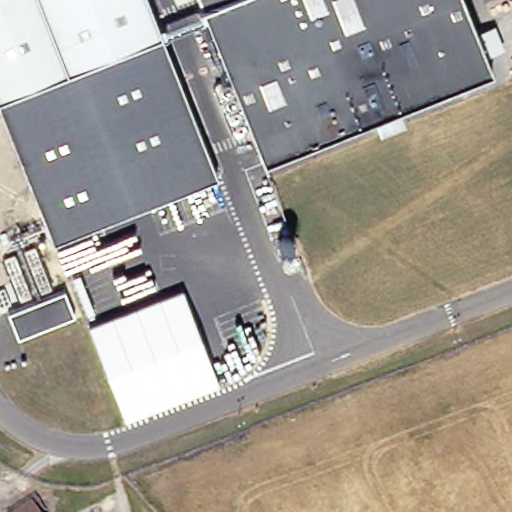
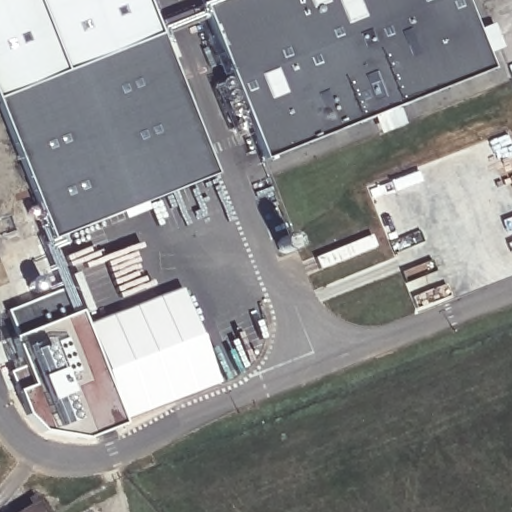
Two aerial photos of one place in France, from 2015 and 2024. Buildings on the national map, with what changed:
unchanged [(211,170),(212,175),(48,240),(41,222),(14,154),(0,118),(0,0),(143,0),(183,102),(211,170)]
unchanged [(193,0),(182,5),(181,0),(193,0)]
unchanged [(238,85),(205,0),(461,0),(310,57),(238,85)]
unchanged [(268,151),(267,150),(266,150),(265,150),(238,85),(310,57),(461,0),(470,0),(495,64),(268,151)]
unchanged [(498,71),(270,163),(267,155),(268,154),(268,153),(268,151),(495,64),(498,71)]
unchanged [(66,287),(77,314),(20,336),(9,310),(66,287)]
unchanged [(183,289),(220,385),(123,420),(87,325),(183,289)]
new [(123,420),(85,437),(45,430),(27,413),(17,392),(8,372),(30,363),(20,336),(77,314),(81,310),(87,325),(123,420)]
unchanged [(39,496),(49,512),(14,512),(39,496)]

